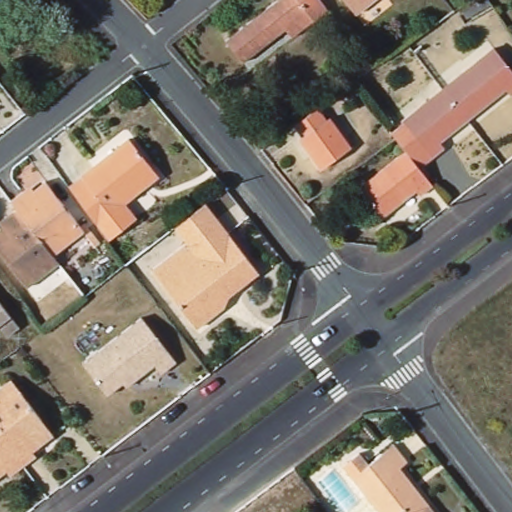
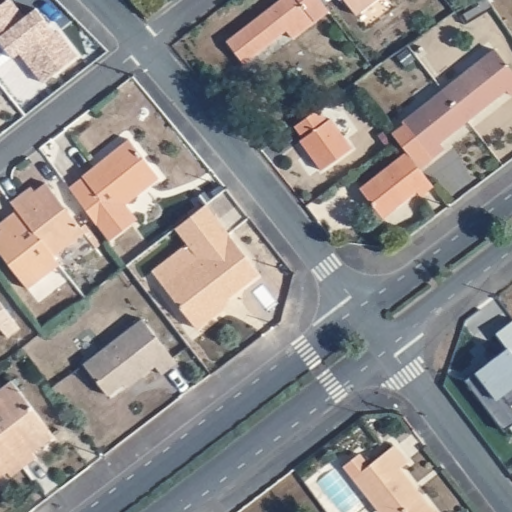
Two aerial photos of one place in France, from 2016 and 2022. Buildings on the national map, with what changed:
new [(0,39),(0,4),(4,0),(13,0),(25,15),(35,7),(51,26),(76,53),(42,81),(15,51),(12,55),(0,39)]
unchanged [(279,29),(239,59),(223,40),(274,0),(317,0),(324,10),(288,38),(279,29)]
unchanged [(342,0),(373,0),(354,15),(342,0)]
unchanged [(404,125),(403,124),(443,92),(495,54),(512,76),(512,95),(507,98),(503,93),(466,121),(437,142),(442,150),(417,169),(406,155),(391,135),(404,125)]
unchanged [(325,119),(329,116),(351,145),(320,167),(299,139),(303,135),(295,124),(317,108),(325,119)]
unchanged [(128,145),(154,179),(121,204),(136,222),(108,245),(106,242),(69,190),(128,145)]
unchanged [(419,197),(416,194),(382,220),(360,191),(406,155),(417,169),(431,187),(419,197)]
unchanged [(53,258),(59,265),(26,291),(0,257),(0,236),(3,234),(0,230),(0,226),(5,222),(17,212),(11,204),(23,195),(30,189),(34,195),(46,185),(84,234),(53,258)]
unchanged [(195,326),(151,269),(186,241),(174,226),(205,202),(258,271),(226,295),(222,306),(195,326)]
unchanged [(121,386),(106,398),(81,367),(141,321),(175,366),(160,377),(153,368),(139,380),(125,390),(121,386)]
new [(510,403),(512,405),(512,423),(505,428),(467,378),(476,370),(507,347),(495,332),(512,321),(512,402),(510,403)]
unchanged [(30,451),(34,456),(21,466),(8,475),(4,470),(0,474),(0,386),(8,380),(51,435),(30,451)]
unchanged [(434,512),(380,512),(344,465),(359,452),(369,464),(395,444),(408,462),(400,467),(429,506),(434,512)]

